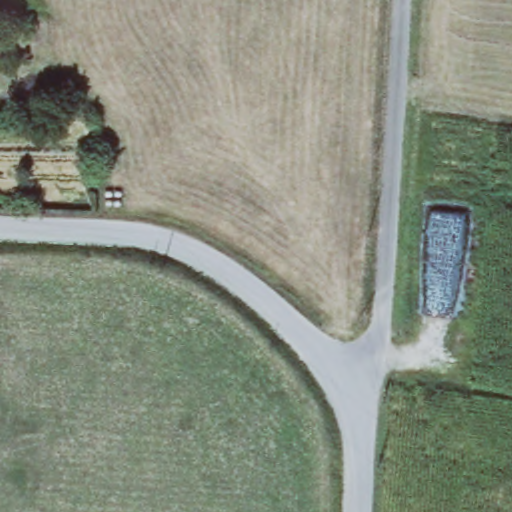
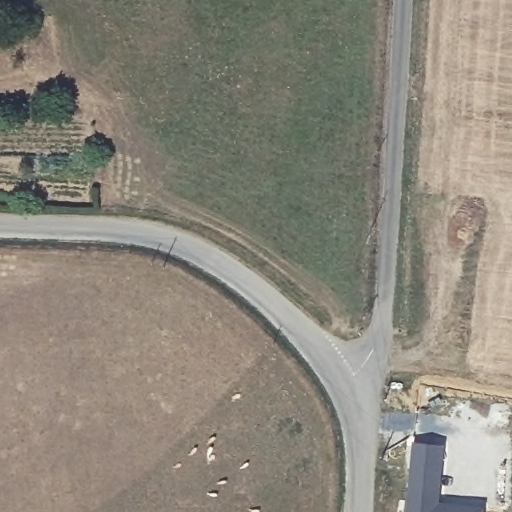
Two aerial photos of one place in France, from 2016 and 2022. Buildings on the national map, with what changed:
new [(414,443),(442,445),(436,511),(444,512),(445,507),(485,510),(484,512),(408,512),(414,443)]

